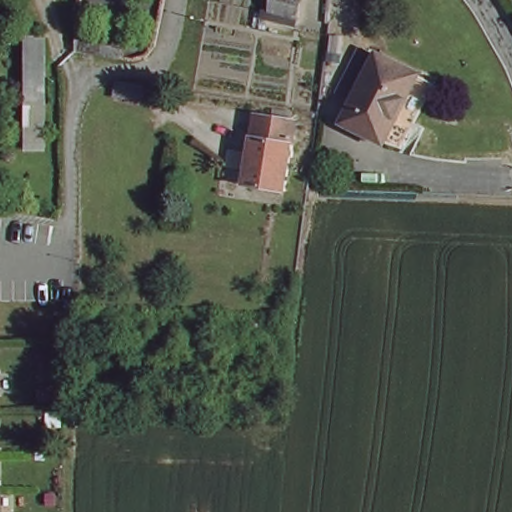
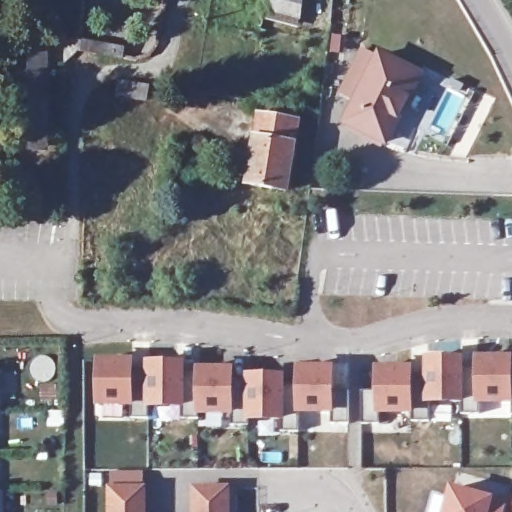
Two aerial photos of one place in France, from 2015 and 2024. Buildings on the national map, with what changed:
unchanged [(295,17),(269,12),(270,0),(298,0),(295,17)]
demolished [(45,44),(46,68),(29,69),(29,44),(45,44)]
new [(29,154),(29,69),(29,44),(45,44),(46,68),(48,154),(29,154)]
unchanged [(80,47),(125,53),(124,62),(79,56),(80,47)]
unchanged [(425,73),(394,137),(354,116),(383,53),(425,73)]
unchanged [(296,124),(288,191),(250,186),(258,118),(296,124)]
new [(371,366),(410,366),(410,376),(421,376),(421,357),(461,358),(462,370),(472,370),(472,357),(509,358),(509,367),(512,368),(512,415),(511,415),(511,408),(475,408),(475,414),(460,414),(460,407),(425,407),(425,420),(372,418),(372,422),(359,422),(359,393),(371,393),(371,366)]
new [(131,361),(131,374),(140,374),(141,363),(183,363),(183,374),(194,375),(194,369),(231,369),(232,381),(242,381),(242,376),(280,376),(281,388),(293,389),(293,366),(330,367),(329,392),(348,392),(347,425),(328,425),(328,417),(294,417),(294,430),(280,430),(280,423),(256,424),(256,420),(231,420),(231,418),(179,417),(179,412),(143,411),(143,417),(130,417),(130,411),(94,411),(94,360),(131,361)]
new [(443,512),(451,484),(495,498),(508,501),(504,512),(443,512)]
new [(223,490),(223,512),(190,512),(191,489),(223,490)]
new [(142,492),(141,512),(107,512),(107,491),(142,492)]

